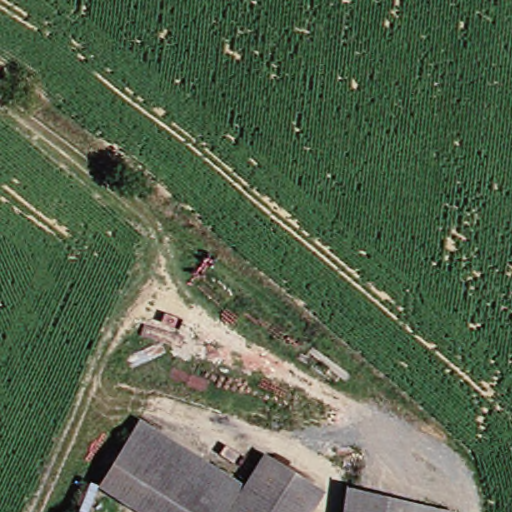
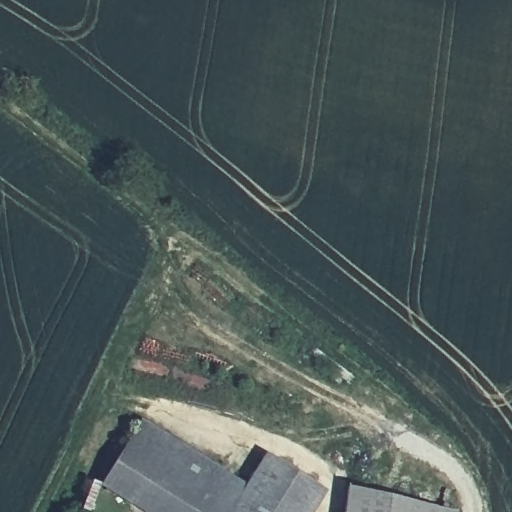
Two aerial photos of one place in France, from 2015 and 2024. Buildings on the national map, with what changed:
unchanged [(250,492),(237,512),(149,512),(105,482),(150,420),(250,492)]
unchanged [(319,512),(237,512),(250,492),(273,460),(301,482),(328,499),(319,512)]
unchanged [(415,512),(335,512),(337,495),(415,512)]

